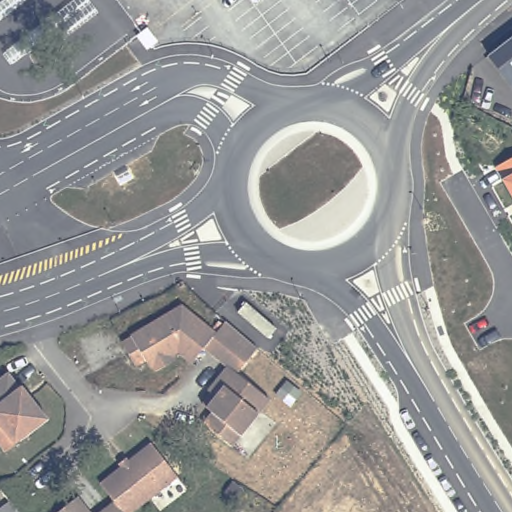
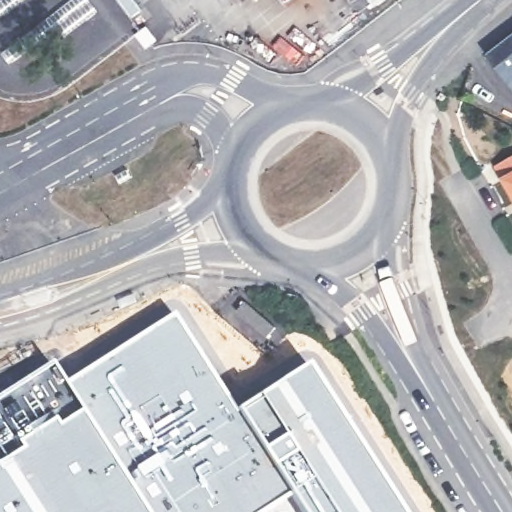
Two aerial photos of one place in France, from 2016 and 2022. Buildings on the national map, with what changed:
unchanged [(488,48),(512,31),(512,85),(488,48)]
unchanged [(503,179),(496,166),(512,157),(512,197),(503,179)]
demolished [(192,308),(218,329),(216,331),(205,345),(192,360),(180,350),(174,353),(176,356),(156,367),(154,363),(151,364),(146,355),(136,361),(122,336),(132,330),(131,329),(183,301),(192,308)]
new [(0,512),(0,397),(55,362),(71,382),(176,312),(245,412),(317,362),(414,512),(0,512)]
demolished [(258,345),(238,370),(271,397),(233,443),(204,420),(213,409),(203,401),(212,390),(220,380),(217,378),(228,364),(205,345),(216,331),(218,329),(227,318),(258,345)]
demolished [(0,447),(0,381),(8,374),(20,389),(21,388),(48,420),(6,453),(0,447)]
demolished [(128,464),(151,446),(177,480),(136,512),(119,512),(119,511),(114,504),(100,486),(121,470),(128,464)]
demolished [(86,512),(60,512),(76,499),(86,512)]
demolished [(119,511),(119,512),(103,512),(114,504),(119,511)]
demolished [(16,512),(2,512),(11,505),(16,512)]

